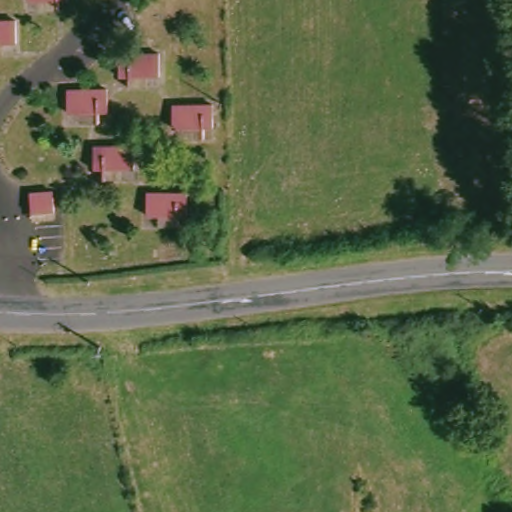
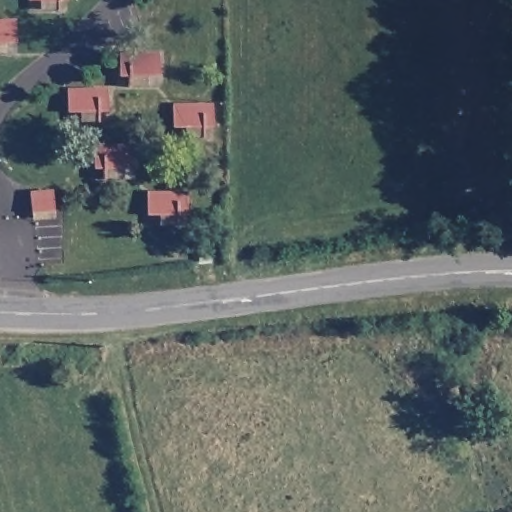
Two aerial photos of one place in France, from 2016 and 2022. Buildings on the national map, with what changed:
unchanged [(12,39),(0,39),(0,18),(12,18),(12,39)]
unchanged [(117,52),(155,51),(155,73),(117,73),(117,52)]
unchanged [(61,89),(102,87),(102,108),(62,109),(61,89)]
unchanged [(170,104),(205,103),(205,122),(169,123),(170,104)]
unchanged [(89,146),(128,145),(127,167),(88,168),(89,146)]
unchanged [(28,188),(51,188),(50,211),(28,210),(28,188)]
unchanged [(142,192),(180,192),(180,213),(142,213),(142,192)]

